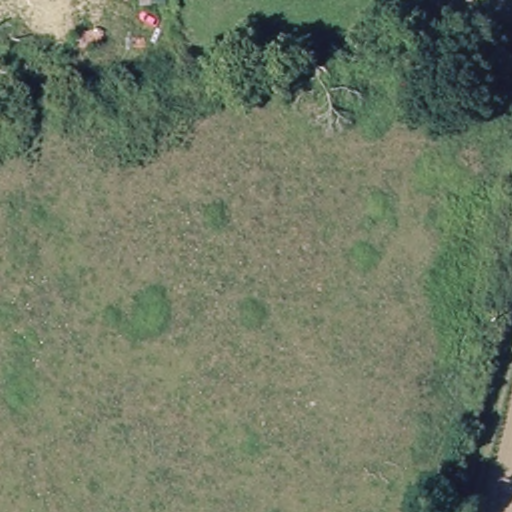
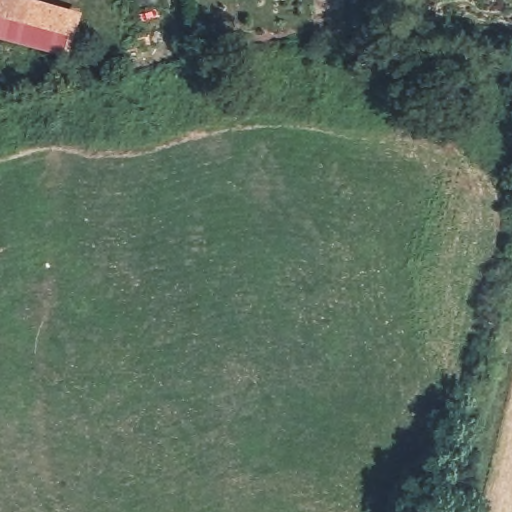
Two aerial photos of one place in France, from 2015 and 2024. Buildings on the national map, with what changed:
new [(21,45),(0,39),(0,0),(32,0),(21,45)]
new [(84,12),(71,58),(21,45),(32,0),(40,0),(84,12)]

